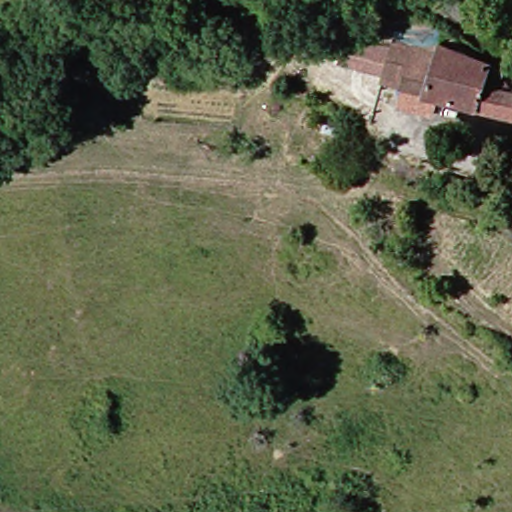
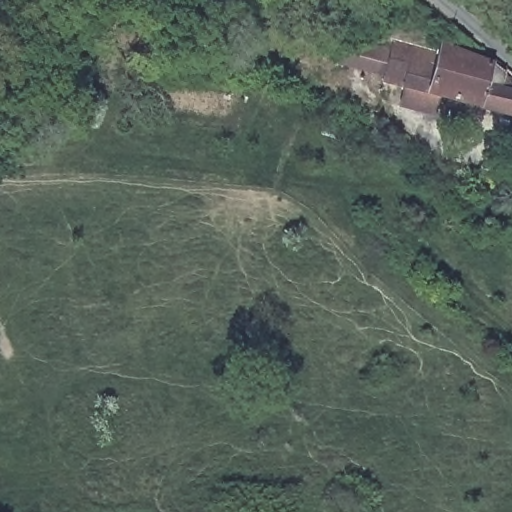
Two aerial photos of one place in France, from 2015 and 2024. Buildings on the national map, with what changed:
unchanged [(424,58),(429,49),(473,60),(478,65),(492,77),(489,90),(510,94),(512,95),(512,117),(508,121),(375,83),(379,64),(352,57),(346,66),(334,62),(329,60),(330,52),(319,49),(322,41),(333,44),(334,41),(339,42),(383,45),(424,58)]

